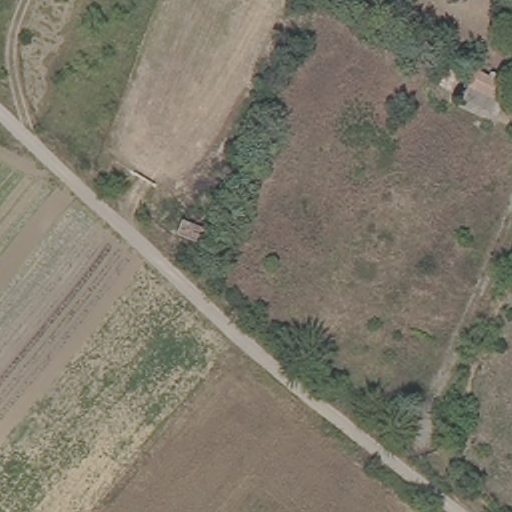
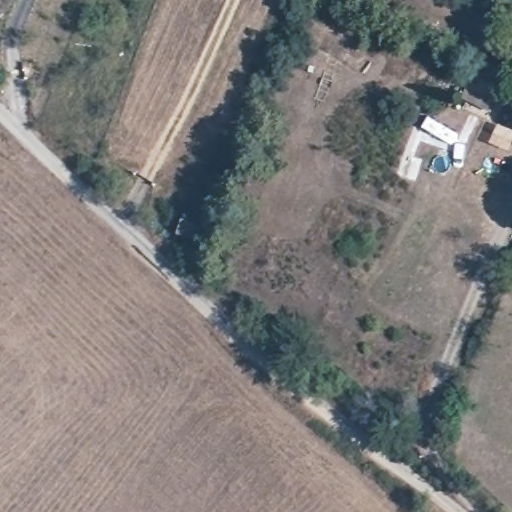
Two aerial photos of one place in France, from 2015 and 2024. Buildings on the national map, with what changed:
unchanged [(510,80),(494,120),(459,105),(475,65),(510,80)]

